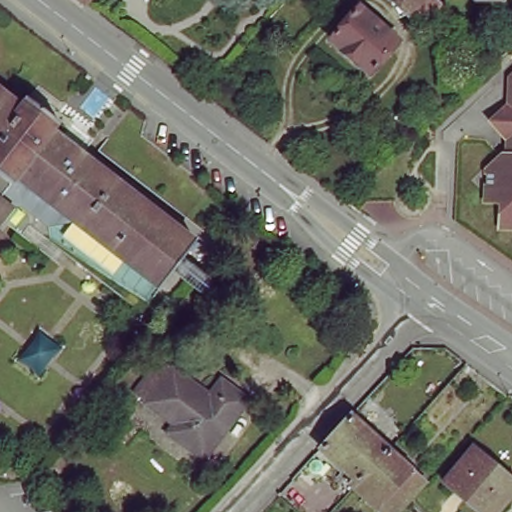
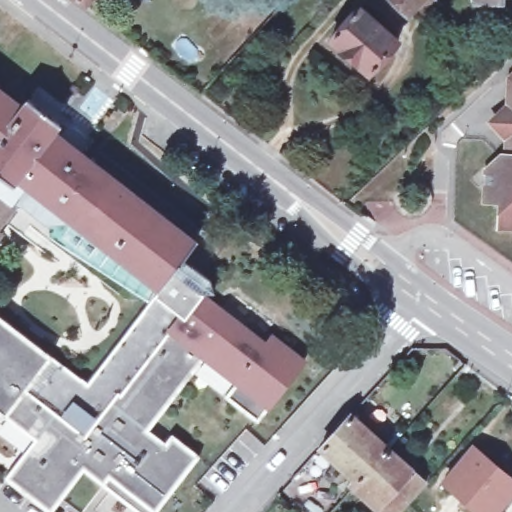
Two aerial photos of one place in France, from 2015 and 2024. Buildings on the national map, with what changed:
unchanged [(85,3),(82,0),(88,0),(85,3)]
unchanged [(414,10),(403,0),(423,0),(414,10)]
unchanged [(366,8),(404,44),(376,74),(338,40),(366,8)]
unchanged [(507,99),(508,75),(512,71),(512,102),(507,99)]
unchanged [(0,86),(0,84),(1,85),(0,86)]
demolished [(26,105),(33,96),(63,120),(57,129),(184,227),(161,256),(148,271),(125,255),(20,176),(6,195),(15,202),(10,208),(0,221),(0,86),(1,85),(26,105)]
new [(201,286),(205,295),(266,339),(272,333),(307,361),(269,410),(258,422),(226,396),(235,385),(203,360),(150,430),(166,442),(173,433),(201,456),(157,512),(137,512),(85,471),(52,512),(50,512),(5,477),(35,440),(5,415),(0,411),(0,316),(52,356),(88,383),(156,295),(163,282),(148,271),(125,255),(20,176),(6,195),(15,202),(10,208),(0,221),(0,86),(1,85),(26,105),(33,96),(63,120),(57,129),(184,227),(200,237),(186,255),(194,260),(213,275),(217,287),(201,286)]
unchanged [(498,225),(499,200),(482,200),(484,167),(500,153),(505,153),(505,139),(510,137),(506,133),(506,107),(512,102),(512,225),(498,225)]
new [(0,236),(0,223),(6,228),(0,236)]
demolished [(200,237),(186,255),(175,268),(163,282),(148,271),(161,256),(184,227),(200,237)]
demolished [(194,260),(213,275),(217,287),(201,286),(183,274),(194,260)]
demolished [(168,357),(217,395),(223,387),(230,380),(255,398),(251,404),(210,457),(176,431),(183,423),(142,391),(168,357)]
unchanged [(359,486),(355,482),(358,479),(325,447),(356,413),(393,448),(359,486)]
unchanged [(512,474),(512,497),(498,512),(487,512),(451,480),(482,445),(512,474)]
unchanged [(400,512),(393,512),(387,506),(383,510),(359,486),(393,448),(429,482),(400,512)]

